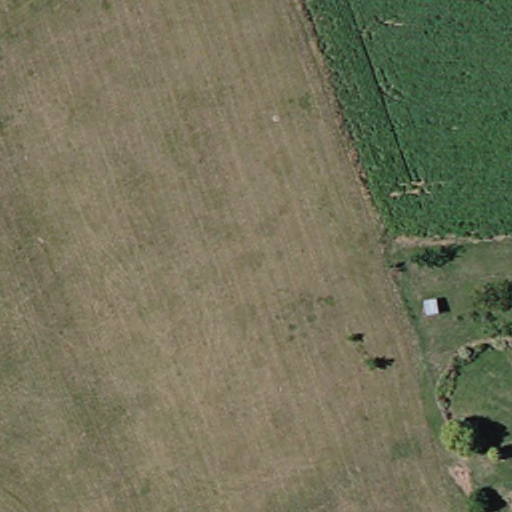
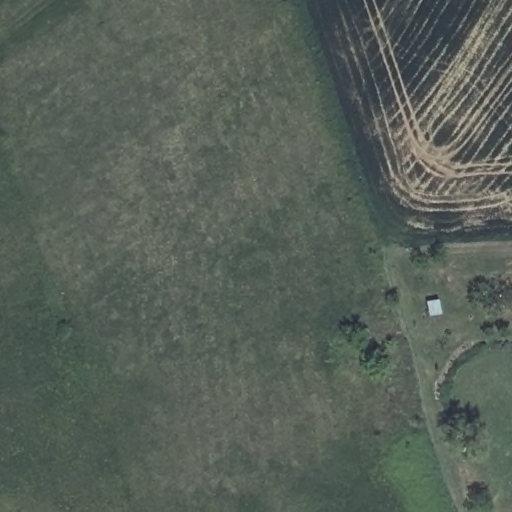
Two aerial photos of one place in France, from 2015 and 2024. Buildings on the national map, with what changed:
unchanged [(478,455),(508,438),(512,442),(512,484),(478,455)]

